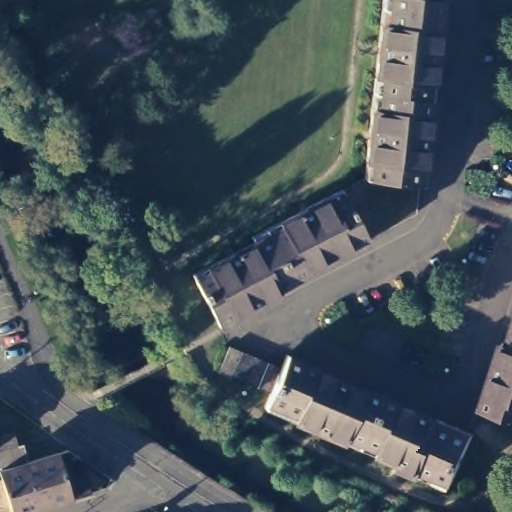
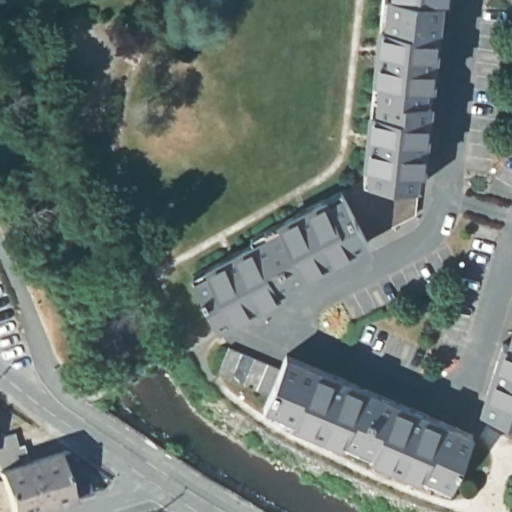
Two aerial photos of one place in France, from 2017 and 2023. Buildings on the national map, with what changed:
unchanged [(419,186),(364,178),(383,0),(442,0),(434,79),(419,186)]
unchanged [(364,178),(419,186),(415,213),(368,238),(343,189),(360,180),(364,178)]
unchanged [(255,242),(251,235),(343,189),(368,238),(369,241),(277,287),(280,293),(218,325),(192,274),(255,242)]
unchanged [(512,332),(512,414),(482,404),(504,337),(510,339),(512,332)]
unchanged [(216,374),(231,339),(282,361),(288,347),(485,431),(459,494),(261,409),(267,395),(216,374)]
unchanged [(28,455),(0,463),(0,462),(0,432),(15,427),(19,441),(24,440),(28,455)]
unchanged [(0,467),(0,465),(69,444),(79,452),(90,488),(13,511),(12,510),(6,512),(0,512),(0,476),(2,475),(0,467)]

